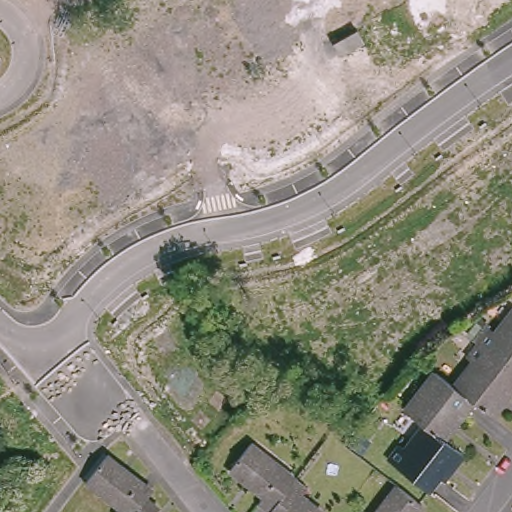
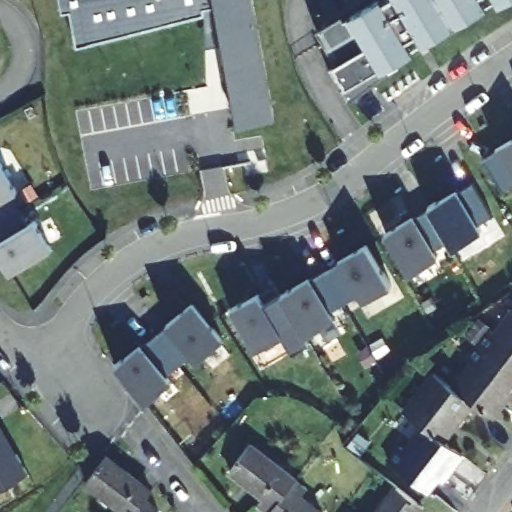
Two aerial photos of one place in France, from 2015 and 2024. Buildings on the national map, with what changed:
new [(233,122),(212,1),(77,38),(70,2),(60,6),(59,0),(253,0),(273,113),(233,122)]
new [(345,19),(376,0),(493,0),(412,47),(416,54),(349,103),(328,69),(368,45),(355,22),(323,42),(316,31),(342,15),(345,19)]
new [(334,152),(292,181),(270,150),(313,122),(334,152)]
new [(485,157),(497,147),(512,138),(512,185),(505,190),(485,157)]
new [(20,190),(13,196),(30,224),(35,220),(52,248),(12,273),(0,254),(0,162),(2,161),(20,190)]
new [(493,216),(480,224),(482,229),(454,247),(450,242),(437,250),(440,256),(409,274),(384,231),(414,214),(416,217),(432,209),(430,206),(459,190),(474,182),(493,216)]
new [(392,283),(364,301),(360,295),(331,312),(335,317),(306,335),(296,317),(280,327),(283,332),(256,349),(233,310),(260,293),(277,285),(285,292),(310,277),(312,279),(341,262),(339,259),(367,242),(392,283)]
new [(194,303),(224,340),(197,361),(192,354),(179,365),(155,335),(194,303)]
unchanged [(490,327),(495,332),(512,310),(512,369),(479,343),(490,327)]
new [(121,360),(122,362),(155,335),(179,365),(165,376),(170,382),(145,403),(114,366),(121,360)]
unchanged [(512,381),(508,386),(512,389),(490,416),(472,402),(452,386),(471,362),(467,357),(477,346),(479,343),(512,369),(512,381)]
unchanged [(452,386),(472,402),(442,440),(422,425),(404,411),(405,410),(434,372),(452,386)]
new [(17,454),(28,474),(0,490),(0,424),(17,454)]
unchanged [(442,440),(462,454),(442,482),(437,479),(430,491),(389,461),(397,450),(402,453),(422,425),(442,440)]
unchanged [(262,507),(252,498),(257,491),(224,464),(244,437),(289,472),(301,482),(290,495),(312,512),(269,512),(262,507)]
unchanged [(112,510),(118,502),(85,476),(105,451),(150,487),(145,493),(157,504),(151,512),(115,512),(112,510)]
unchanged [(391,480),(417,501),(408,512),(365,512),(391,480)]
unchanged [(357,508),(362,512),(353,512),(357,508)]

